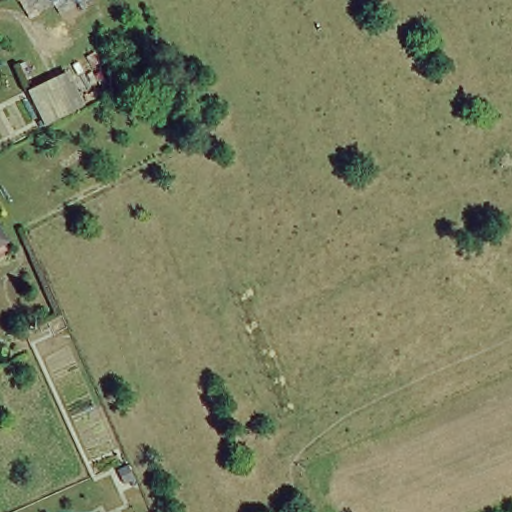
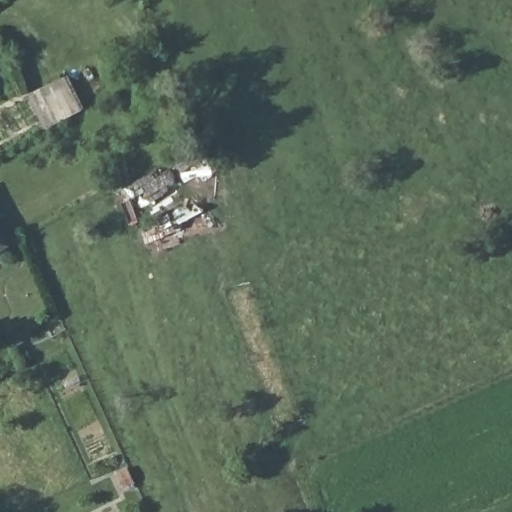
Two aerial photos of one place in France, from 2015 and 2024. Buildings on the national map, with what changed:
unchanged [(60,74),(77,108),(40,124),(23,93),(60,74)]

